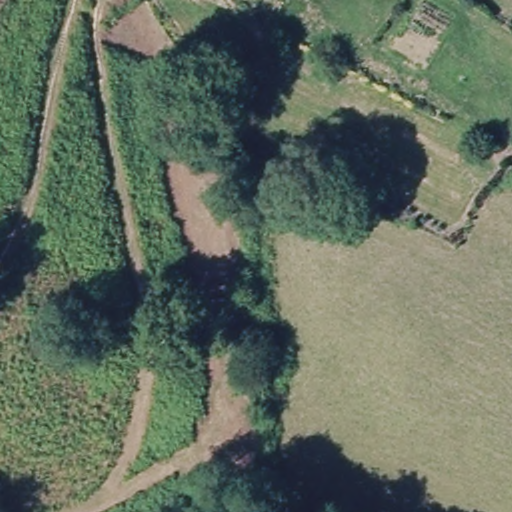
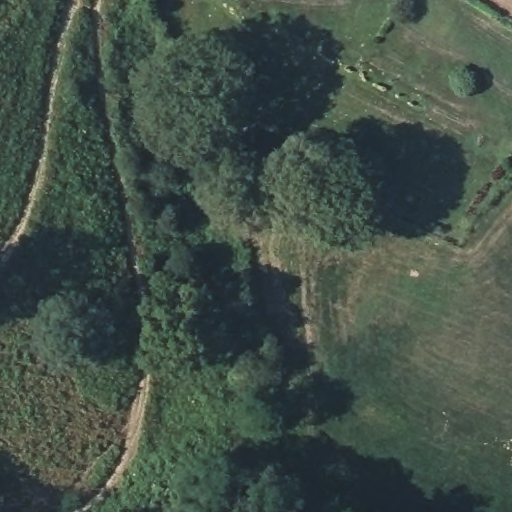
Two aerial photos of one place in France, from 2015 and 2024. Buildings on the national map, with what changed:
[]

